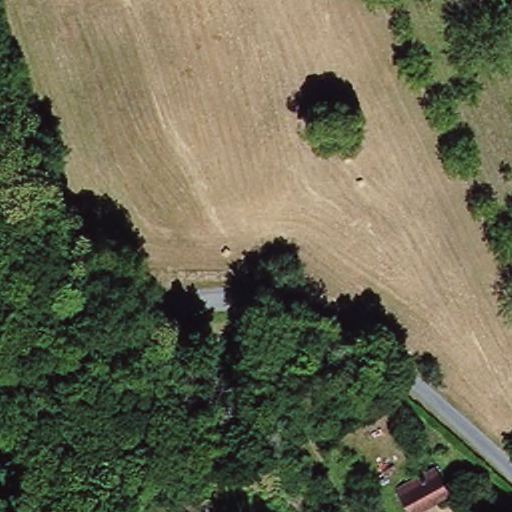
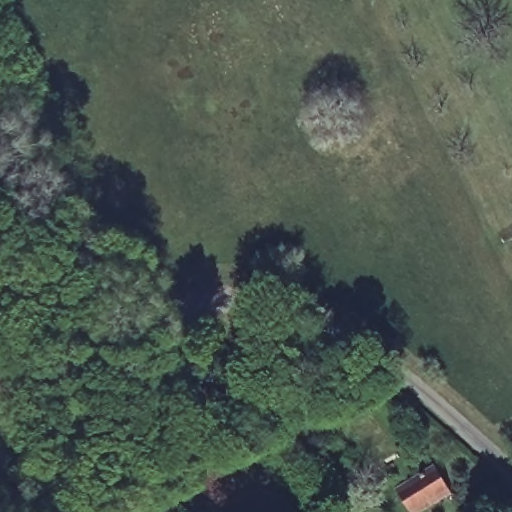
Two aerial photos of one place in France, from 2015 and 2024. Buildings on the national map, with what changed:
unchanged [(438,470),(442,468),(453,493),(412,512),(400,485),(438,470)]

